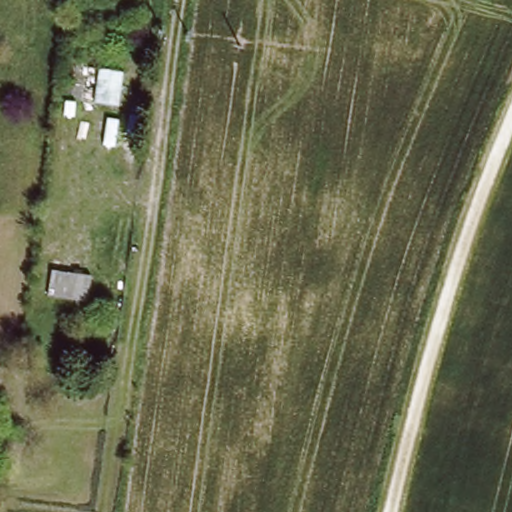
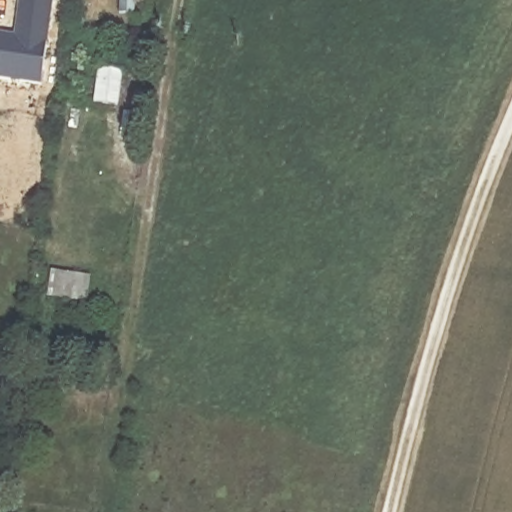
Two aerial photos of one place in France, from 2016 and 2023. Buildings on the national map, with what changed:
new [(19,0),(51,0),(40,87),(0,82),(0,38),(14,40),(19,0)]
unchanged [(95,70),(128,74),(125,106),(91,102),(95,70)]
unchanged [(95,283),(92,306),(55,301),(59,278),(95,283)]

